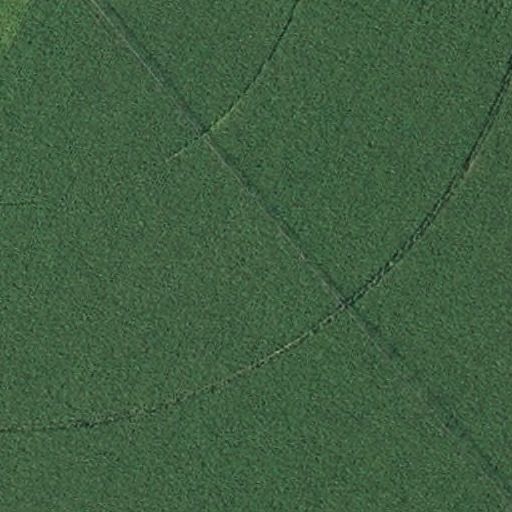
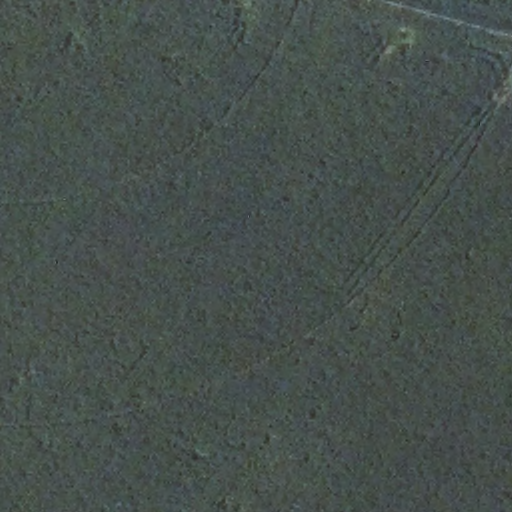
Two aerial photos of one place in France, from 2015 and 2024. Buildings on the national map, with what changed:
[]

